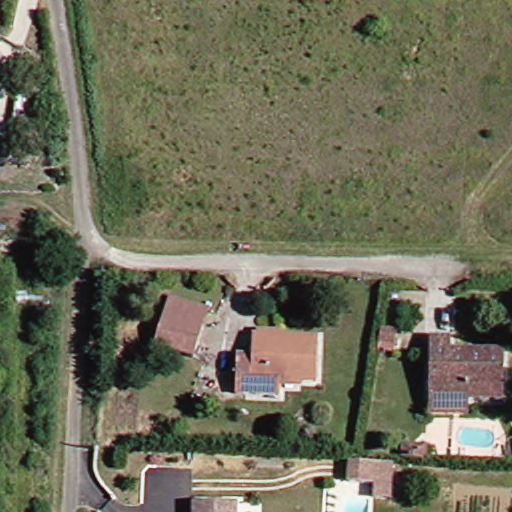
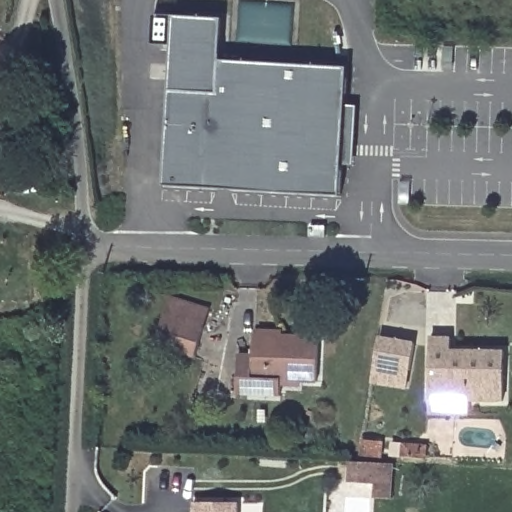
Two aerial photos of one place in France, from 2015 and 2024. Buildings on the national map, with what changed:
new [(345,105),(357,107),(354,165),(342,163),(340,195),(162,186),(171,45),(151,45),(153,15),(222,18),(220,61),(347,67),(345,105)]
unchanged [(39,100),(35,129),(7,124),(10,96),(39,100)]
unchanged [(145,355),(154,325),(159,307),(200,320),(195,336),(186,367),(145,355)]
unchanged [(425,411),(425,396),(425,335),(445,335),(445,347),(498,347),(498,397),(462,396),(462,411),(425,411)]
unchanged [(247,356),(247,336),(312,339),(311,382),(275,381),(273,397),(229,395),(230,377),(231,356),(247,356)]
new [(380,337),(416,343),(412,363),(377,356),(380,337)]
unchanged [(423,459),(402,458),(402,445),(424,446),(423,459)]
new [(351,465),(393,466),(392,498),(376,498),(377,483),(348,482),(351,465)]
unchanged [(188,503),(232,504),(232,512),(188,512),(188,503)]

